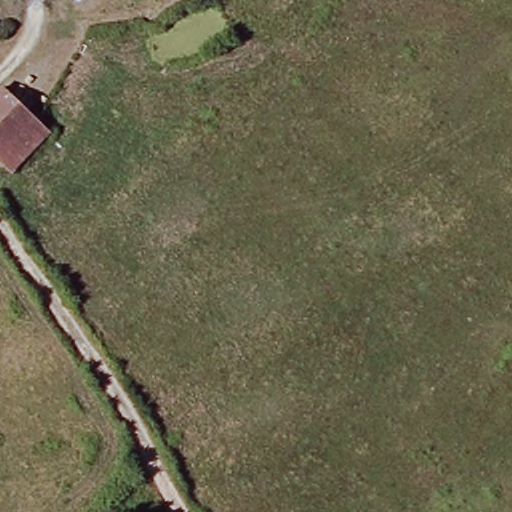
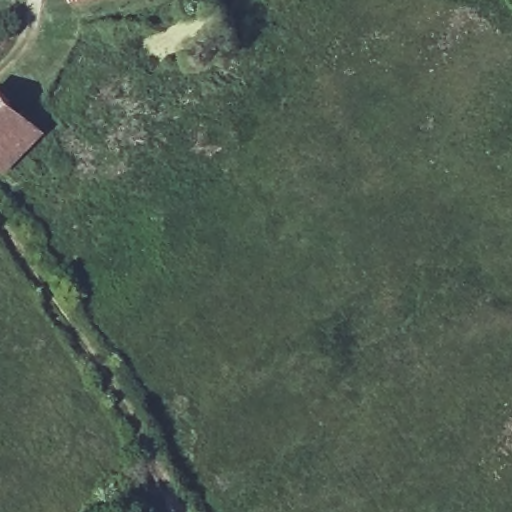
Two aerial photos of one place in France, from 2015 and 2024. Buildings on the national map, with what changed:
unchanged [(72,0),(80,0),(73,2),(72,0)]
unchanged [(6,169),(0,164),(0,90),(44,129),(6,169)]

